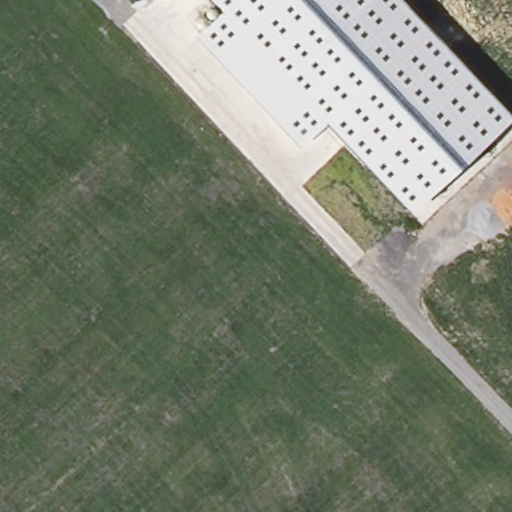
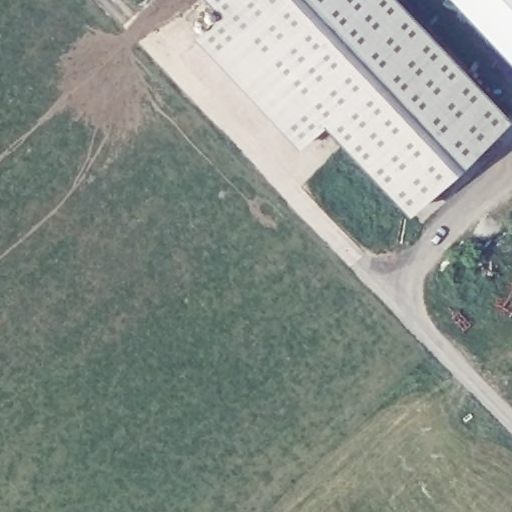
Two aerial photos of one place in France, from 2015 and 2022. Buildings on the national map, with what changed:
unchanged [(300,144),(195,34),(221,10),(211,0),(404,0),(512,114),(512,118),(413,210),(326,121),(300,144)]
new [(512,0),(512,60),(455,0),(512,0)]

